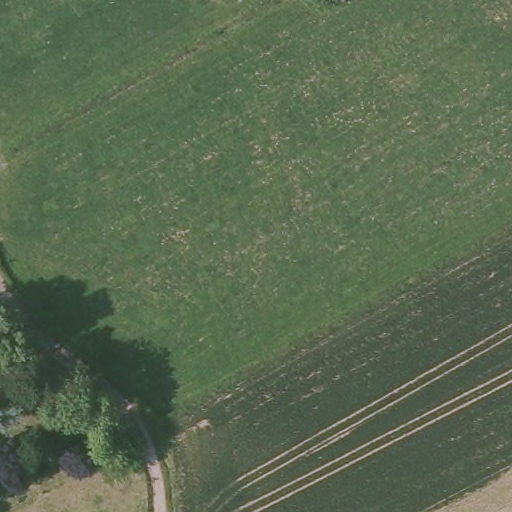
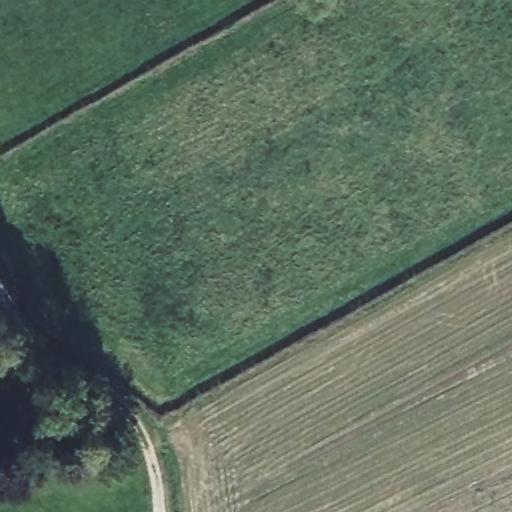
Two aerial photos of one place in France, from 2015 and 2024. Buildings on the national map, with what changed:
[]

